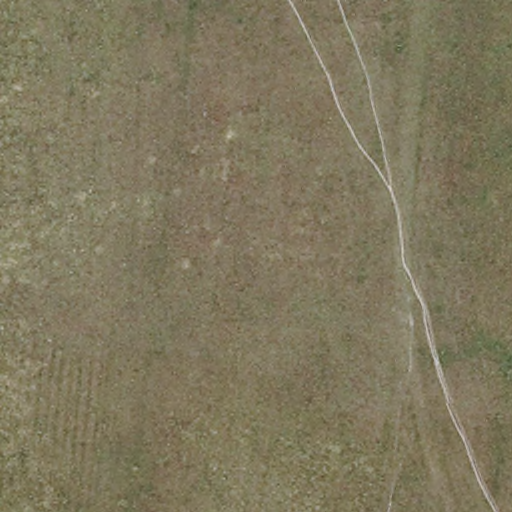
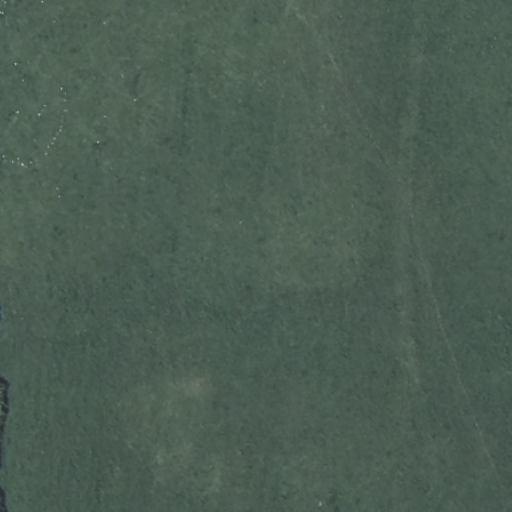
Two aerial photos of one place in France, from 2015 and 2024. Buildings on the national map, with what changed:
[]

